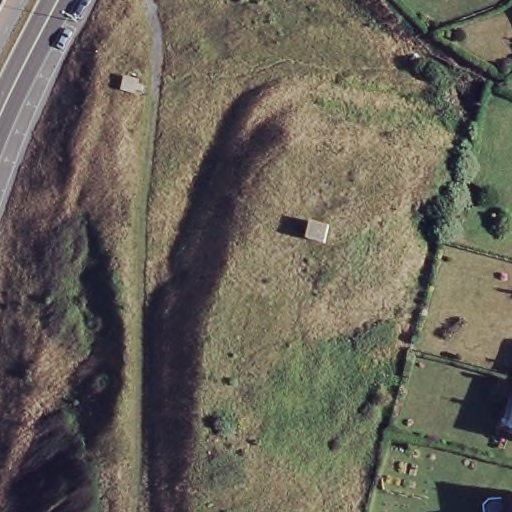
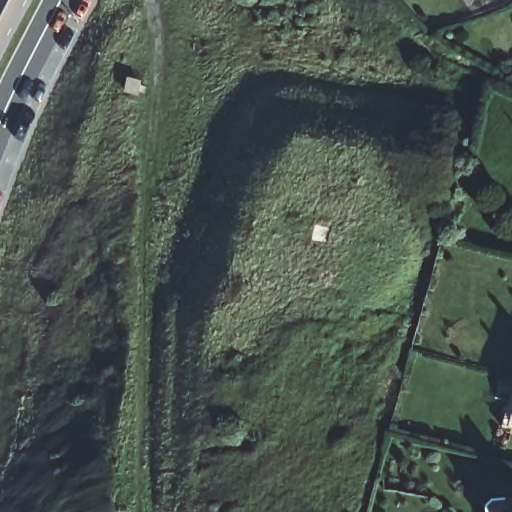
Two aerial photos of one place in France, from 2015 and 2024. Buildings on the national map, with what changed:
unchanged [(493,509),(501,507),(500,494),(512,492),(512,512),(493,512),(493,509)]

